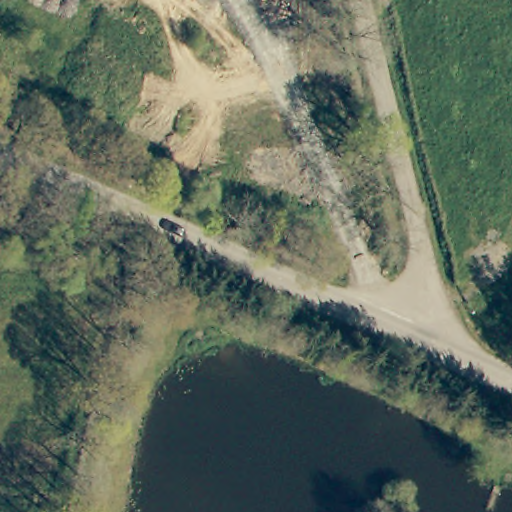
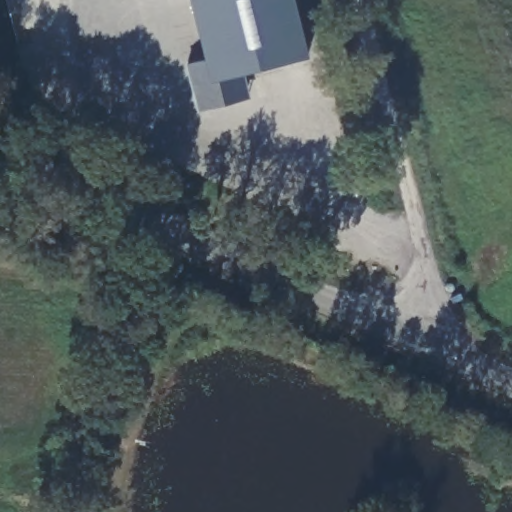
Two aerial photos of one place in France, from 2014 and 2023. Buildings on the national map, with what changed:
new [(205,60),(190,0),(294,0),(308,56),(242,73),(247,90),(249,96),(197,110),(185,66),(194,64),(205,60)]

